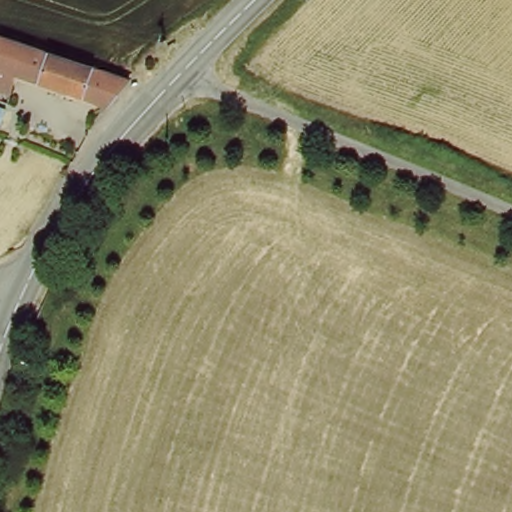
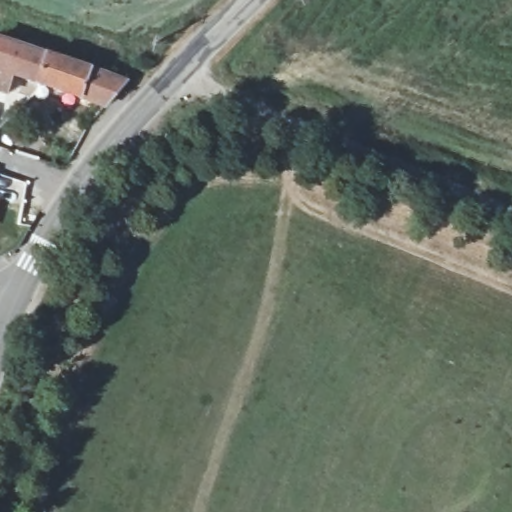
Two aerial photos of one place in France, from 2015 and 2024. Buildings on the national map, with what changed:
unchanged [(126,81),(112,95),(103,106),(12,74),(7,91),(0,89),(0,37),(126,81)]
unchanged [(7,103),(0,123),(0,101),(7,103)]

